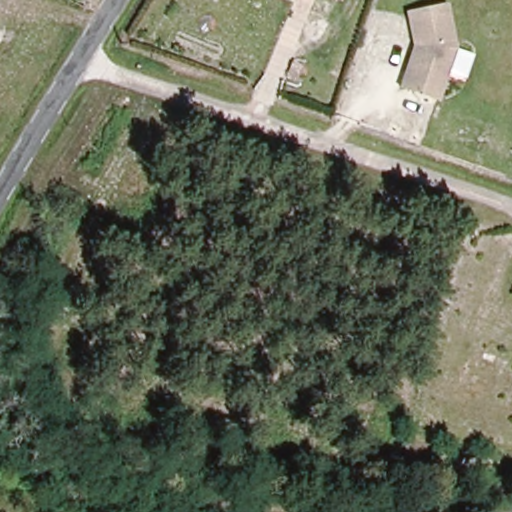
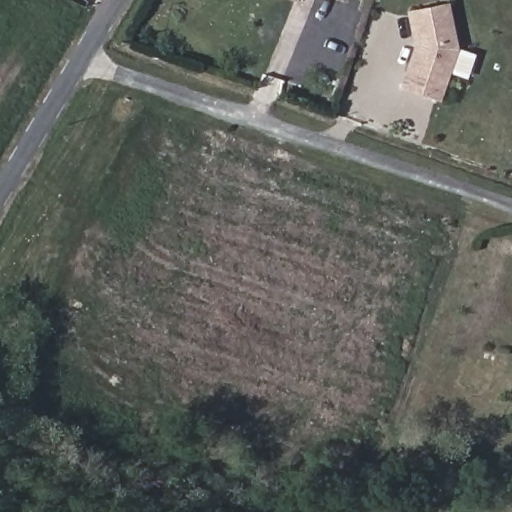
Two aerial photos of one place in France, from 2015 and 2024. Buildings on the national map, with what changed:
unchanged [(442,4),(451,47),(435,96),(400,84),(413,45),(406,11),(442,4)]

